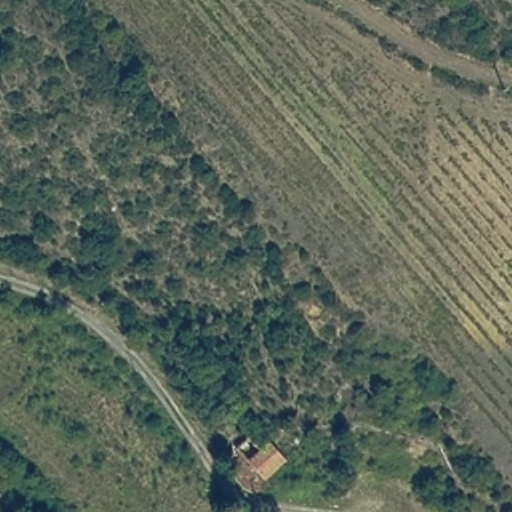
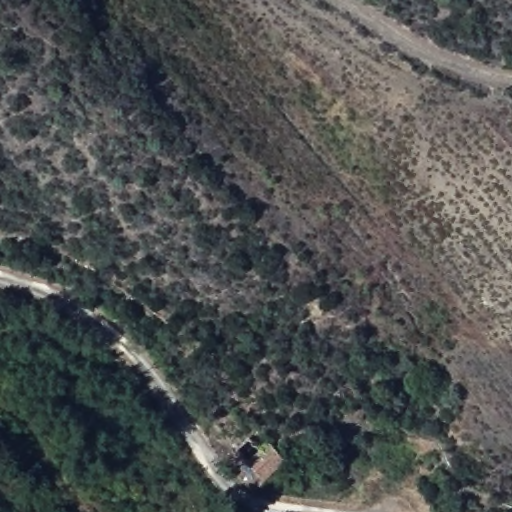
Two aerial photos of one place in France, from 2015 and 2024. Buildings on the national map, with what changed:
unchanged [(247,437),(258,449),(267,442),(284,462),(263,479),(233,448),(247,437)]

